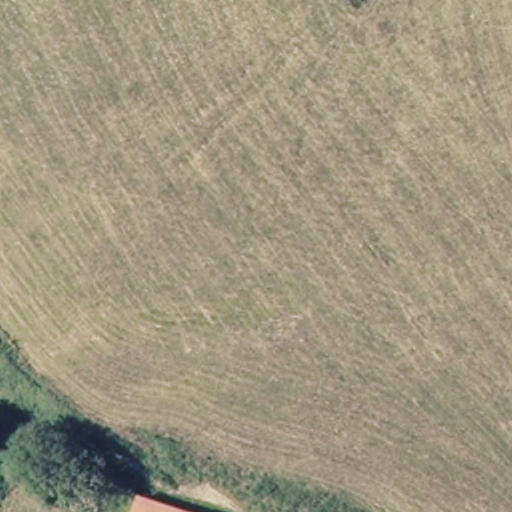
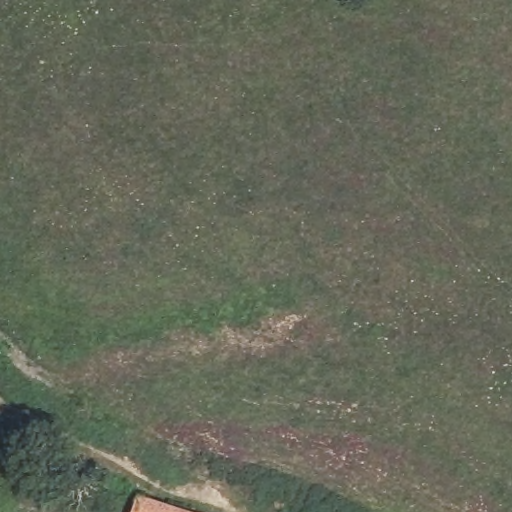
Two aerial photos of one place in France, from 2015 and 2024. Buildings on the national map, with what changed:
unchanged [(129,499),(168,512),(126,512),(129,499)]

